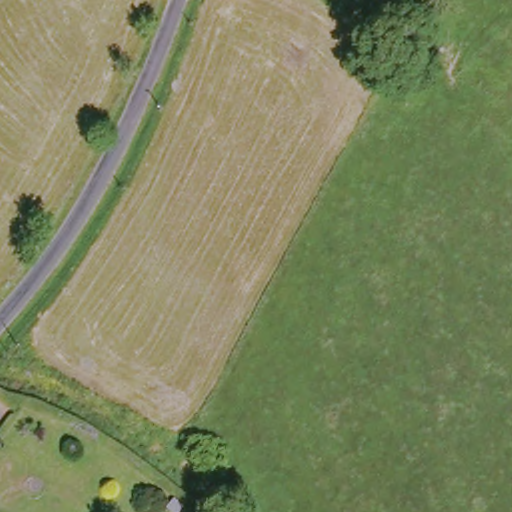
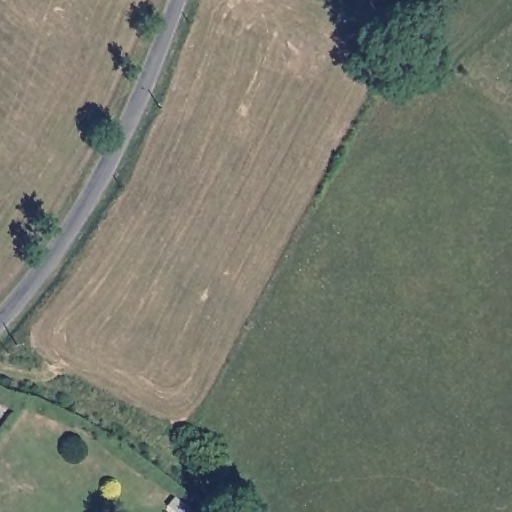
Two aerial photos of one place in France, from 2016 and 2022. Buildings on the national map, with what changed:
unchanged [(0,425),(0,395),(13,402),(0,425)]

